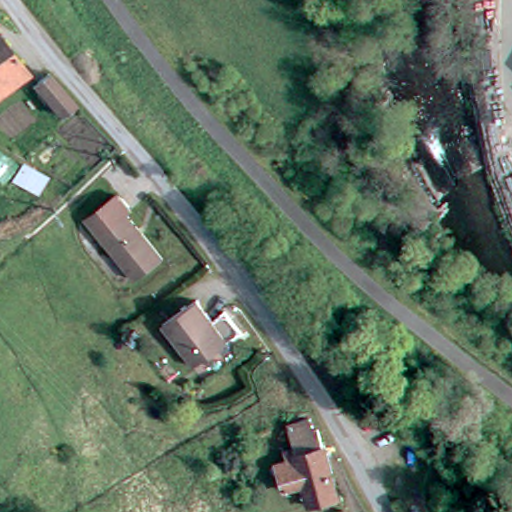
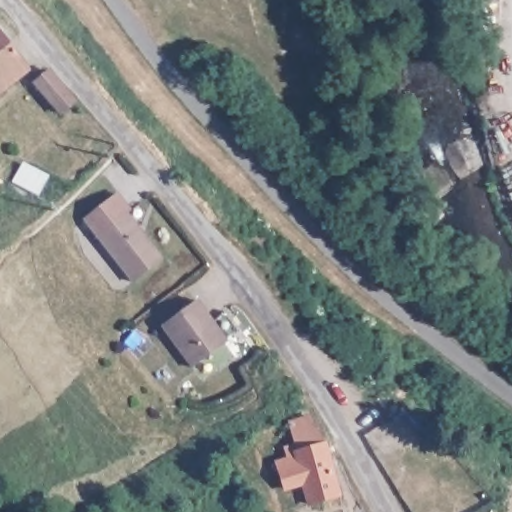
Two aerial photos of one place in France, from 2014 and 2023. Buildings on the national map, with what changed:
unchanged [(0,76),(0,40),(25,72),(7,86),(0,76)]
unchanged [(43,86),(58,74),(85,106),(70,119),(43,86)]
unchanged [(7,86),(0,90),(0,76),(7,86)]
unchanged [(118,196),(132,216),(127,227),(154,267),(129,285),(83,220),(118,196)]
unchanged [(195,305),(227,346),(199,369),(165,328),(195,305)]
unchanged [(308,506),(305,488),(279,489),(274,459),(289,456),(287,438),(299,438),(298,420),(316,419),(317,435),(328,432),(336,503),(308,506)]

